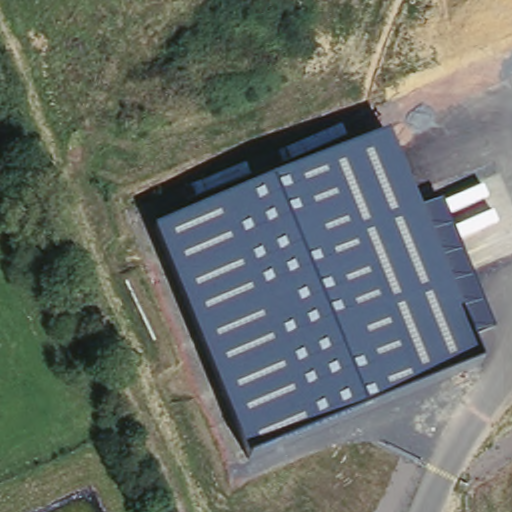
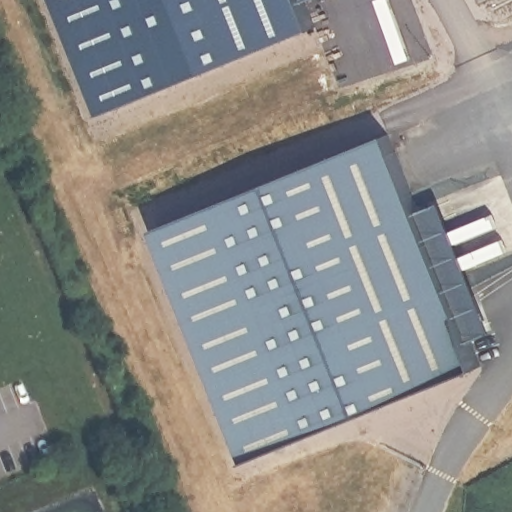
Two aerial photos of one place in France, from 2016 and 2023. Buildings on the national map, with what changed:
new [(105,100),(65,0),(307,0),(314,18),(105,100)]
unchanged [(156,229),(386,133),(419,209),(441,201),(492,331),(471,344),(479,364),(249,458),(156,229)]

